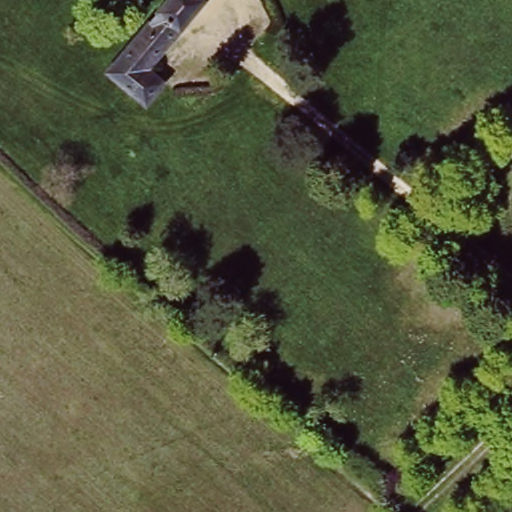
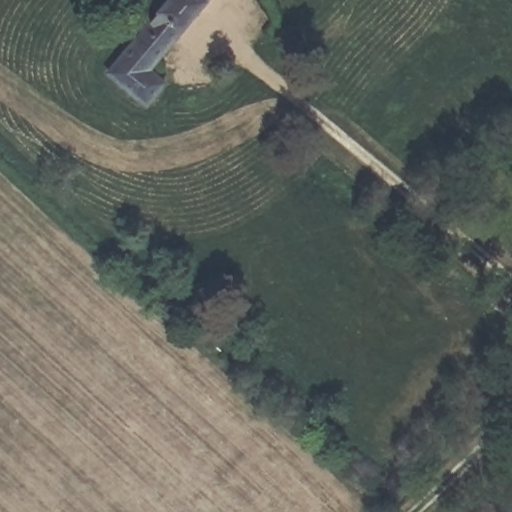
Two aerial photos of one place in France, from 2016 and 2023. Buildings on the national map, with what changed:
unchanged [(173,42),(154,25),(175,0),(208,0),(173,42)]
unchanged [(154,25),(173,42),(151,71),(164,83),(145,105),(111,77),(154,25)]

